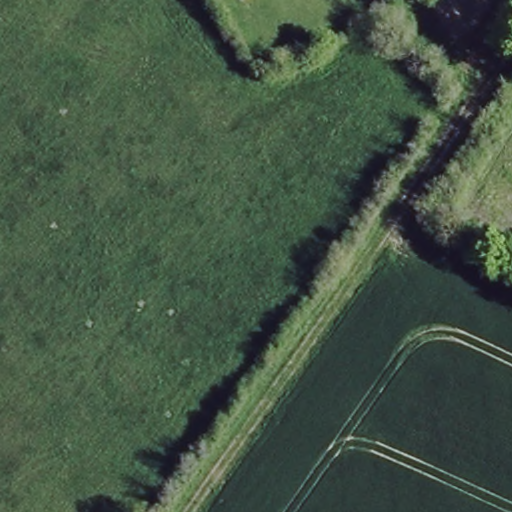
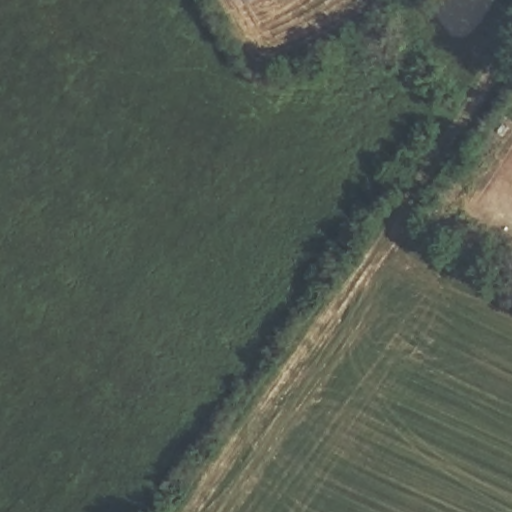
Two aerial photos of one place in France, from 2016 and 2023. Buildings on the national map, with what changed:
unchanged [(243,0),(249,0),(245,3),(243,0)]

